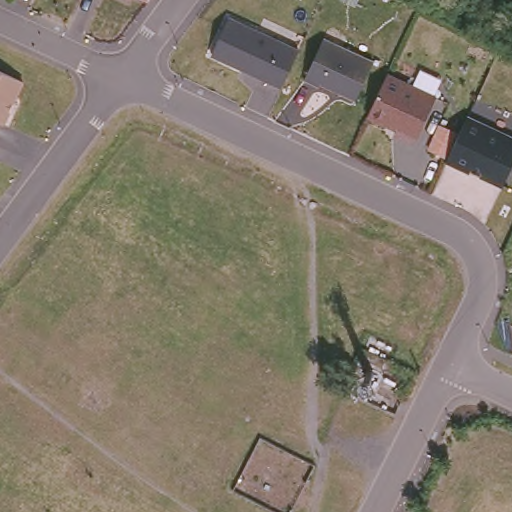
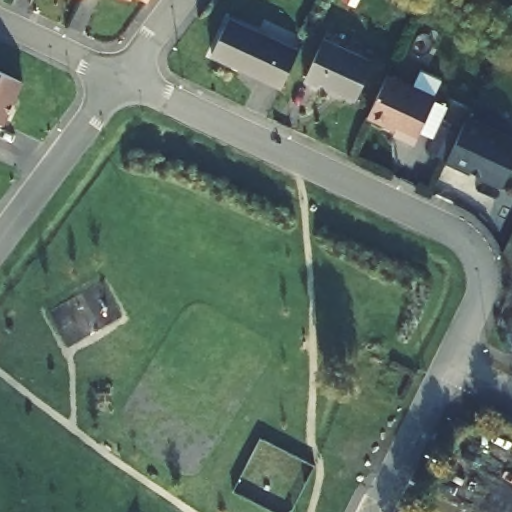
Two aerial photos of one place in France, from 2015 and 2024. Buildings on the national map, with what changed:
unchanged [(298,49),(282,88),(211,55),(231,17),(298,49)]
unchanged [(320,83),(317,89),(302,83),(323,37),(373,60),(356,100),(320,83)]
unchanged [(3,125),(0,124),(0,73),(22,83),(3,125)]
unchanged [(436,98),(415,144),(395,134),(397,130),(368,116),(387,76),(436,98)]
unchanged [(448,157),(467,117),(512,139),(512,167),(503,186),(471,171),(470,174),(445,162),(448,157)]

